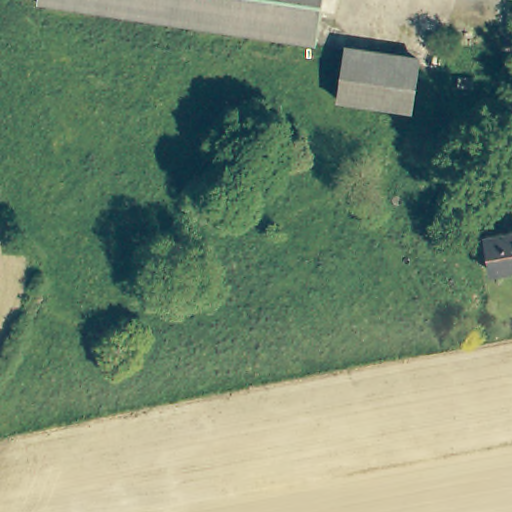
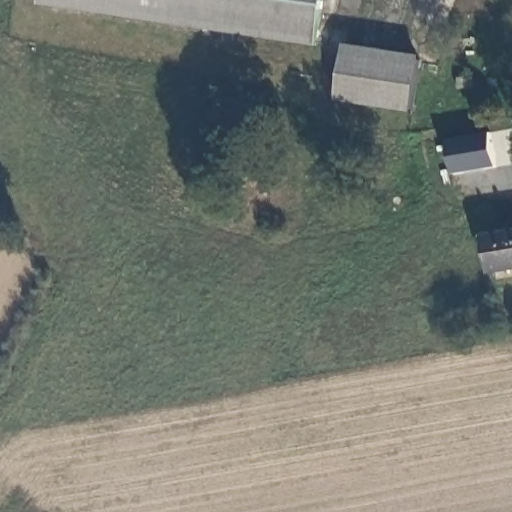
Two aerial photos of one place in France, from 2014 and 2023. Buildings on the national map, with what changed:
unchanged [(38,2),(38,0),(322,0),(316,40),(38,2)]
unchanged [(345,46),(420,56),(414,106),(338,95),(345,46)]
new [(451,173),(445,140),(490,132),(497,166),(451,173)]
unchanged [(492,272),(487,233),(512,229),(512,268),(492,272)]

